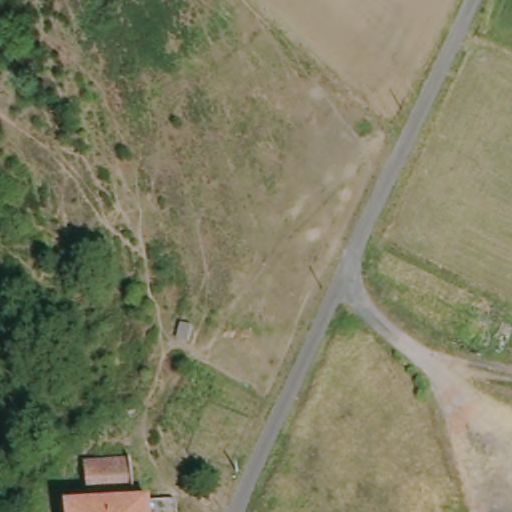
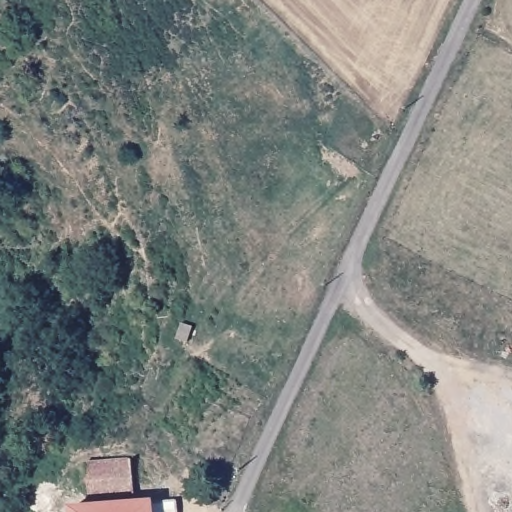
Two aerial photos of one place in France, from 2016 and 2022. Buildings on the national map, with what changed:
unchanged [(130,494),(83,499),(78,463),(125,460),(130,494)]
unchanged [(148,512),(106,512),(106,508),(146,503),(148,512)]
unchanged [(72,512),(106,508),(106,512),(72,512)]

